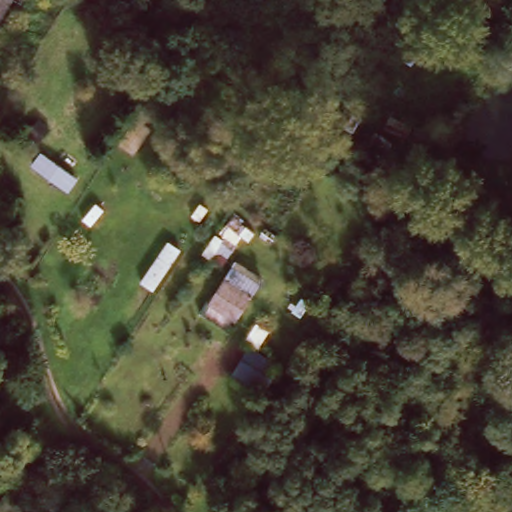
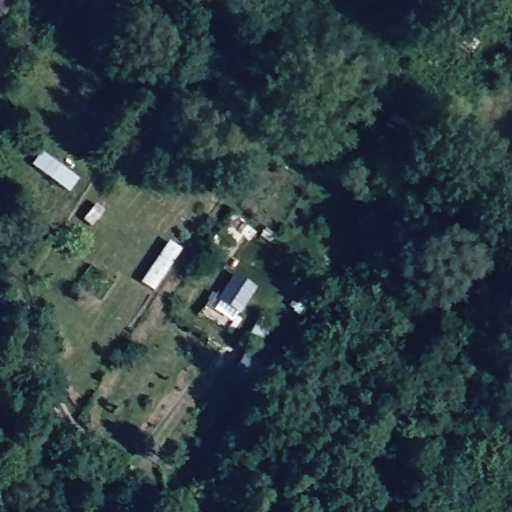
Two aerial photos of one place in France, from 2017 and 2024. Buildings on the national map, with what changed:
unchanged [(0,17),(0,0),(12,0),(0,17)]

